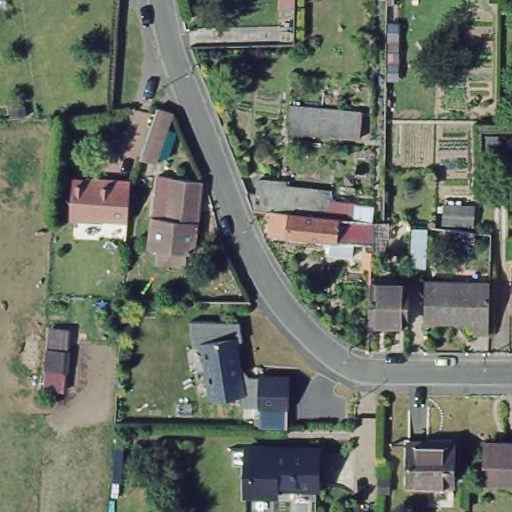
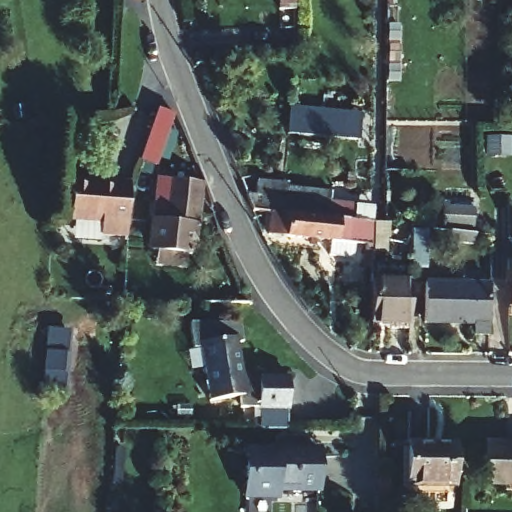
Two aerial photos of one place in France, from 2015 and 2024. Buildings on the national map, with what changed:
unchanged [(215,34),(215,50),(187,51),(187,35),(215,34)]
unchanged [(356,103),(354,131),(292,126),(282,125),(285,98),(293,99),(356,103)]
unchanged [(153,114),(167,120),(154,170),(137,163),(153,114)]
unchanged [(360,228),(359,253),(337,252),(337,238),(272,232),(274,207),(258,206),(253,192),(260,193),(262,178),(286,180),(285,184),(297,185),(332,189),(330,212),(378,216),(378,244),(378,262),(372,262),(373,229),(360,228)]
unchanged [(128,203),(127,220),(100,220),(100,225),(67,223),(70,200),(64,198),(65,184),(92,186),(95,182),(130,183),(128,203)]
unchanged [(157,254),(159,224),(157,223),(160,183),(205,185),(203,225),(200,225),(199,256),(187,256),(185,270),(160,268),(160,254),(157,254)]
unchanged [(437,208),(467,209),(467,226),(437,225),(437,208)]
unchanged [(512,263),(512,303),(510,303),(512,263)]
unchanged [(482,279),(482,331),(465,331),(465,319),(415,319),(414,278),(482,279)]
unchanged [(401,284),(402,323),(363,323),(363,297),(363,283),(401,284)]
unchanged [(239,327),(242,344),(234,345),(238,369),(248,385),(289,385),(289,400),(289,415),(240,414),(239,403),(210,408),(209,400),(205,375),(207,375),(204,350),(194,351),(190,325),(239,327)]
unchanged [(48,328),(72,331),(67,392),(43,391),(48,328)]
unchanged [(407,426),(430,427),(429,430),(452,431),(451,471),(407,469),(407,426)]
unchanged [(477,437),(497,437),(497,432),(512,432),(512,472),(477,472),(477,437)]
unchanged [(246,439),(318,440),(317,478),(278,477),(277,484),(245,484),(246,439)]

